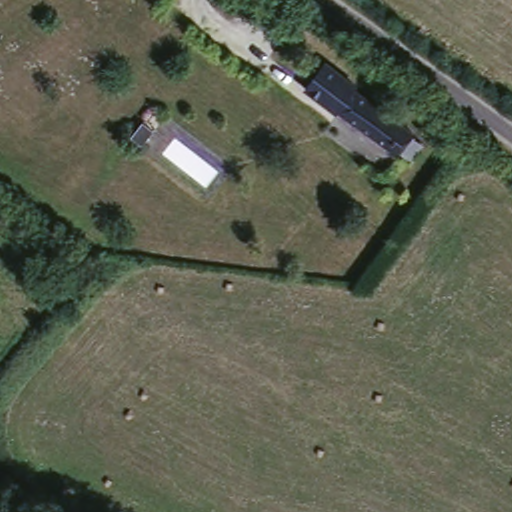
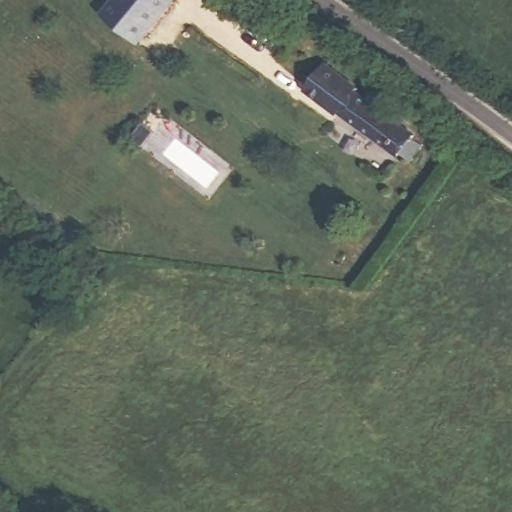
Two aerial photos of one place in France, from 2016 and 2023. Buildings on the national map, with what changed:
new [(139,40),(103,9),(111,0),(173,0),(139,40)]
unchanged [(306,89),(324,64),(353,86),(336,109),(306,89)]
unchanged [(416,128),(414,134),(425,139),(414,157),(403,151),(399,155),(336,109),(353,86),(416,128)]
unchanged [(170,112),(147,142),(133,133),(155,105),(170,112)]

